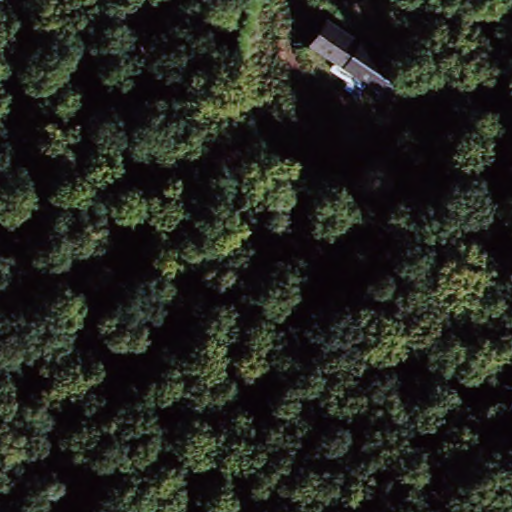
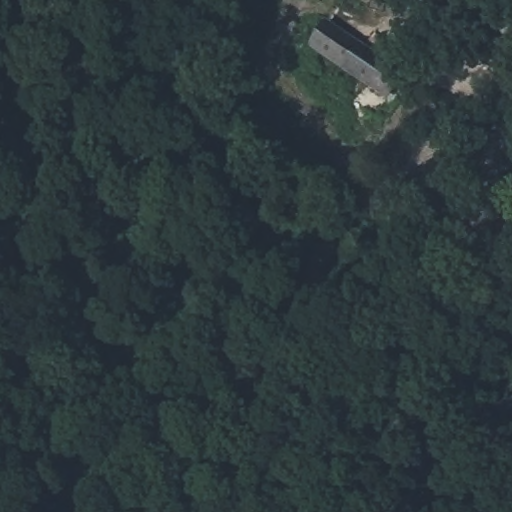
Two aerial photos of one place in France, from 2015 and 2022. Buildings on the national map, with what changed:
unchanged [(305,46),(326,19),(405,73),(387,99),(305,46)]

